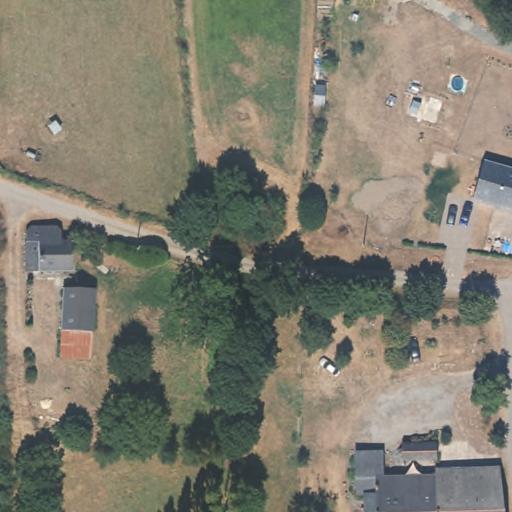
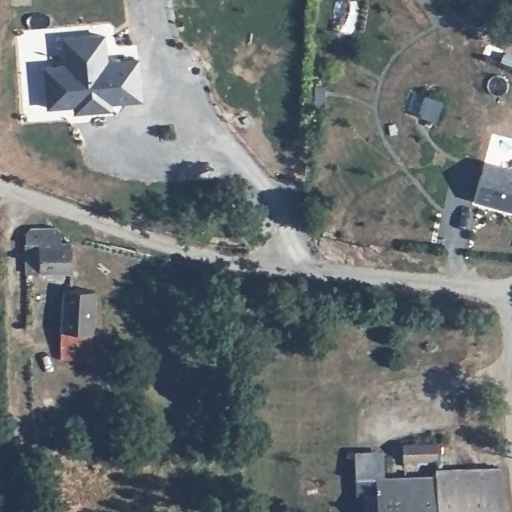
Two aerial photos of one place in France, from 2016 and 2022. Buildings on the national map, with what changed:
new [(64,64),(61,37),(105,33),(108,61),(139,58),(143,102),(111,104),(112,111),(74,114),(72,107),(45,109),(41,66),(64,64)]
unchanged [(512,212),(471,206),(477,168),(512,173),(512,212)]
unchanged [(23,231),(39,226),(60,230),(63,238),(75,240),(71,277),(24,271),(23,231)]
unchanged [(90,362),(55,361),(57,295),(92,294),(90,362)]
unchanged [(417,450),(425,449),(426,463),(395,465),(393,448),(416,446),(417,450)]
unchanged [(343,512),(340,457),(367,455),(368,484),(427,481),(427,473),(482,470),(495,469),(501,512),(343,512)]

